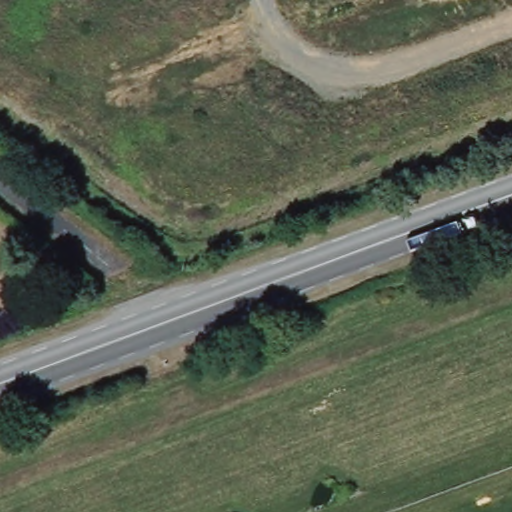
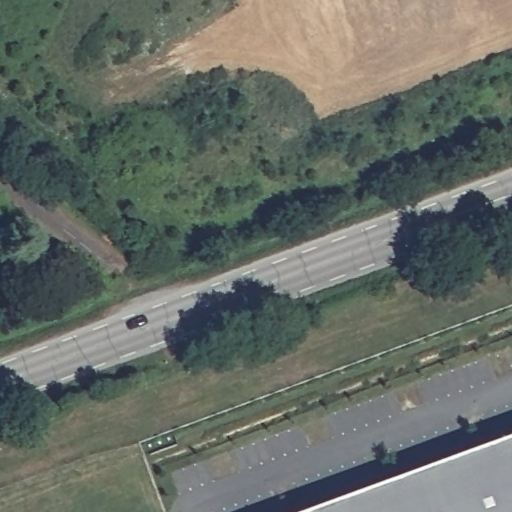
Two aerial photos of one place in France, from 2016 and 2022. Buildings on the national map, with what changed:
new [(512,512),(309,512),(512,439),(512,512)]

